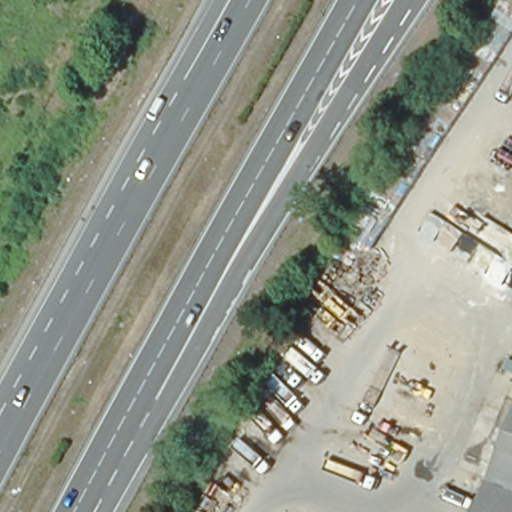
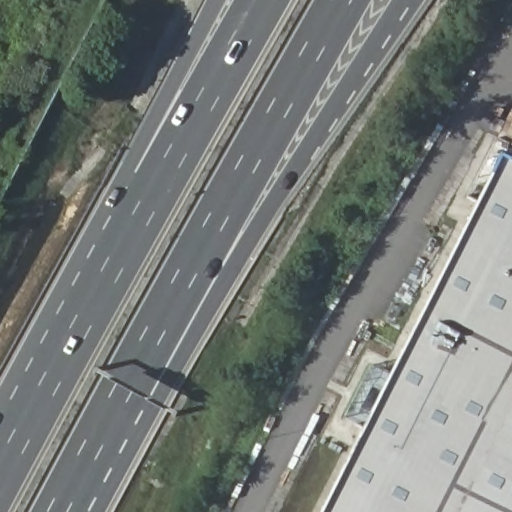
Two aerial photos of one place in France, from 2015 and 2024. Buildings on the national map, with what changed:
demolished [(382,178),(495,0),(512,0),(512,28),(406,194),(392,216),(365,201),(382,178)]
new [(495,142),(512,150),(512,512),(311,512),(495,142)]
demolished [(512,431),(512,512),(478,512),(512,431)]

